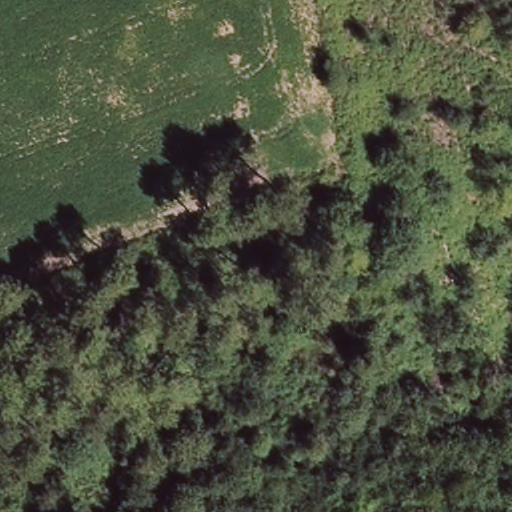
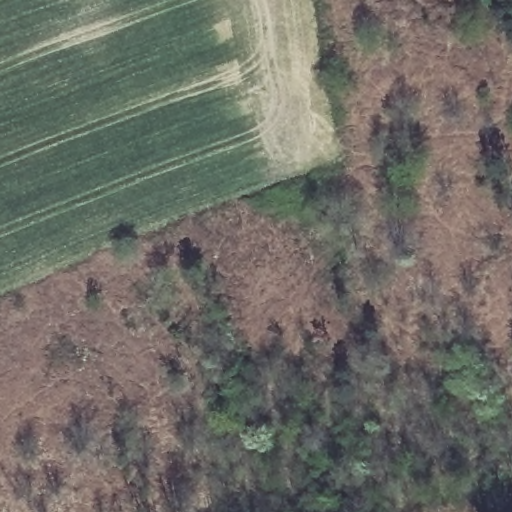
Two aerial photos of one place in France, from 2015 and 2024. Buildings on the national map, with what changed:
[]

